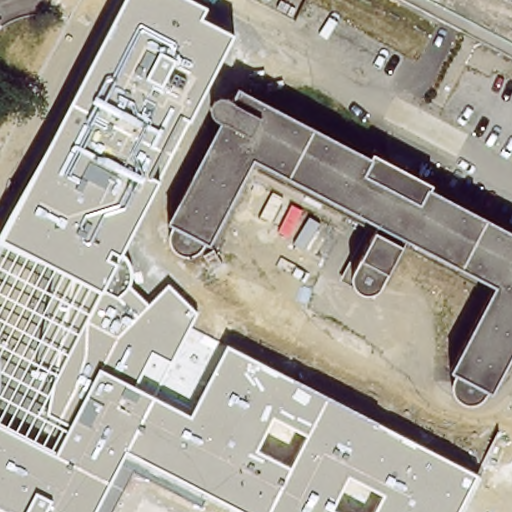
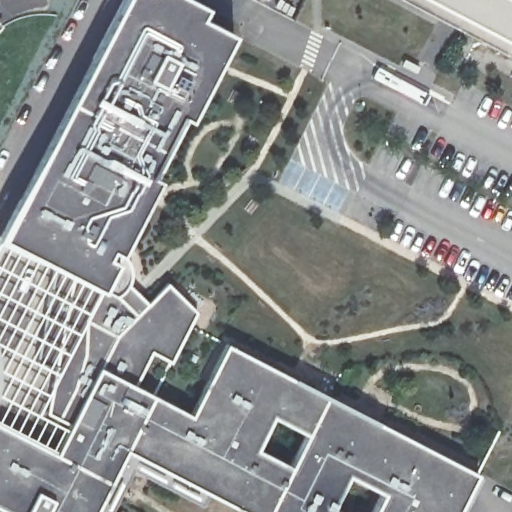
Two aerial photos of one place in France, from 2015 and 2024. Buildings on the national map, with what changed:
unchanged [(206,496),(201,506),(133,469),(111,512),(0,512),(0,233),(123,0),(194,0),(206,6),(202,17),(234,34),(122,253),(129,260),(133,268),(133,278),(131,286),(149,303),(169,283),(198,312),(172,362),(153,352),(136,386),(191,413),(227,344),(482,476),(463,512),(237,512),(206,496)]
unchanged [(512,0),(512,40),(438,0),(512,0)]
demolished [(208,109),(209,103),(210,102),(214,98),(220,97),(226,99),(232,86),(366,160),(370,156),(429,188),(426,192),(512,239),(512,350),(488,396),(484,394),(480,399),(476,403),(470,405),(464,405),(458,403),(453,399),(450,394),(448,388),(449,382),(451,376),(446,373),(490,290),(456,272),(452,280),(277,184),(282,176),(250,159),(205,241),(201,239),(197,243),(192,247),(187,248),(181,248),(176,246),(171,242),(168,237),(166,231),(167,226),(169,220),(163,217),(216,118),(211,115),(208,109)]
demolished [(220,256),(265,282),(252,308),(206,282),(220,256)]

